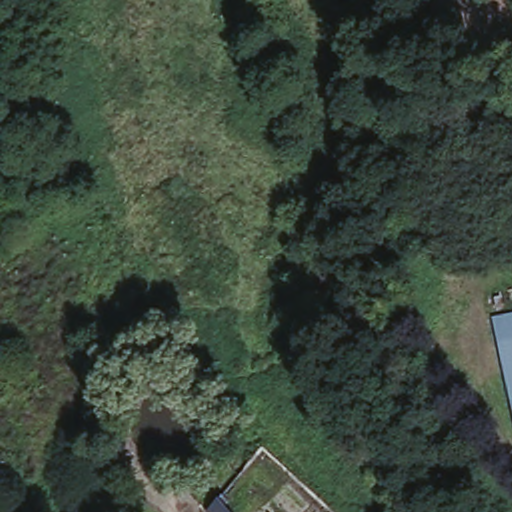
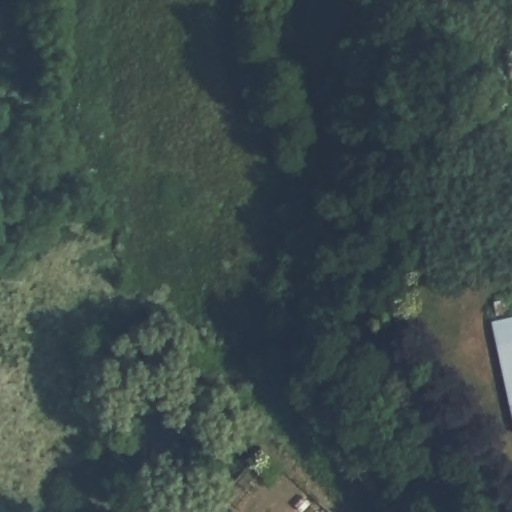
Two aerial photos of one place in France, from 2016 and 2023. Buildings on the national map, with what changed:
unchanged [(487,326),(512,319),(512,403),(511,403),(487,326)]
unchanged [(512,403),(512,406),(511,403),(512,403)]
unchanged [(227,512),(209,512),(206,509),(215,499),(227,512)]

